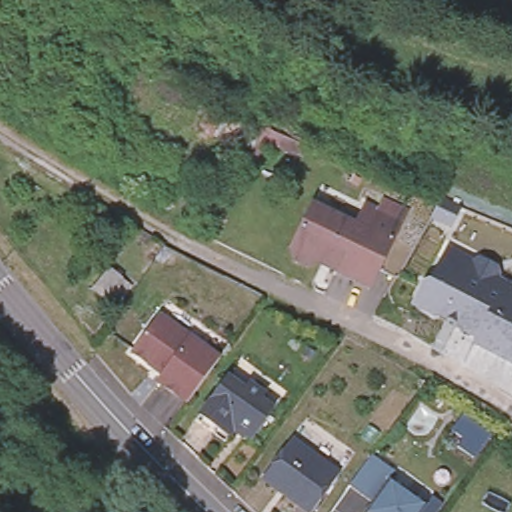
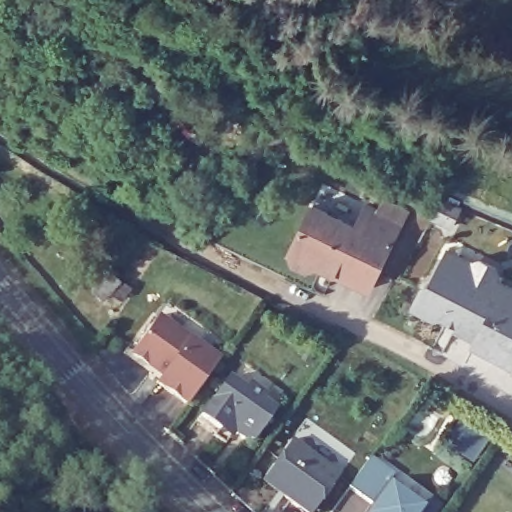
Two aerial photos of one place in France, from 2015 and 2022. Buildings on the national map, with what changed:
unchanged [(306,269),(293,263),(289,253),(307,216),(311,207),(354,228),(363,207),(400,225),(388,250),(369,290),(333,273),(316,266),(306,269)]
unchanged [(451,252),(476,265),(484,262),(498,269),(501,278),(499,281),(512,288),(512,364),(476,346),(479,339),(459,329),(463,321),(452,316),(450,319),(445,316),(438,318),(426,312),(422,298),(428,286),(435,284),(442,270),(446,262),(451,252)]
unchanged [(106,258),(128,277),(106,298),(88,281),(106,258)]
unchanged [(190,406),(161,384),(168,373),(158,367),(153,367),(135,355),(161,318),(223,361),(190,406)]
unchanged [(243,387),(247,382),(262,392),(258,397),(271,408),(251,436),(249,436),(242,436),(222,423),(216,427),(198,414),(226,375),(243,387)]
unchanged [(268,478),(294,441),(343,476),(318,512),(308,512),(288,499),(265,482),(268,478)]
unchanged [(373,459),(397,475),(394,482),(393,481),(376,505),(352,489),(373,459)]
unchanged [(430,507),(426,512),(371,512),(376,505),(393,481),(394,482),(430,507)]

